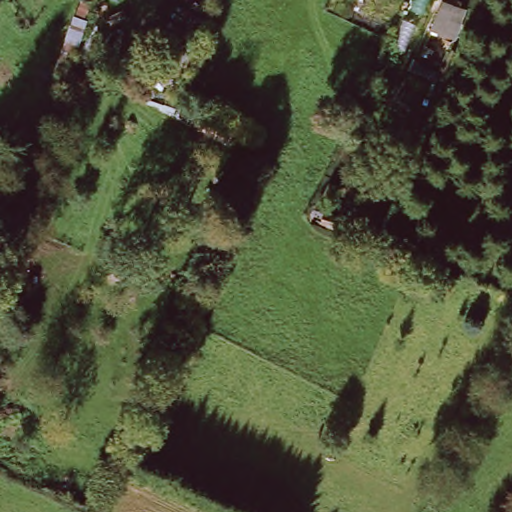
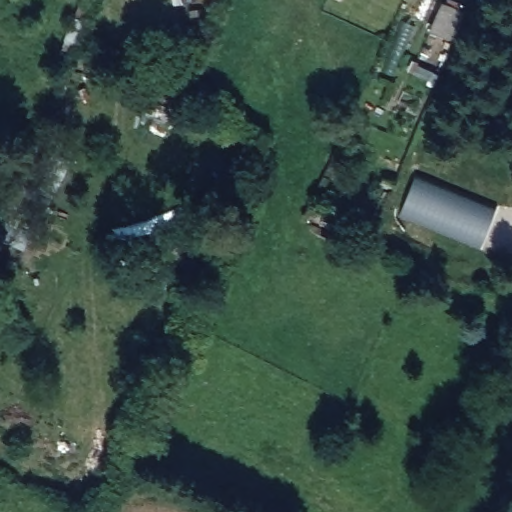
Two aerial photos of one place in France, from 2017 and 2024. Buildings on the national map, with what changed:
unchanged [(440,30),(450,2),(468,9),(457,36),(440,30)]
new [(400,215),(416,176),(495,209),(481,247),(400,215)]

